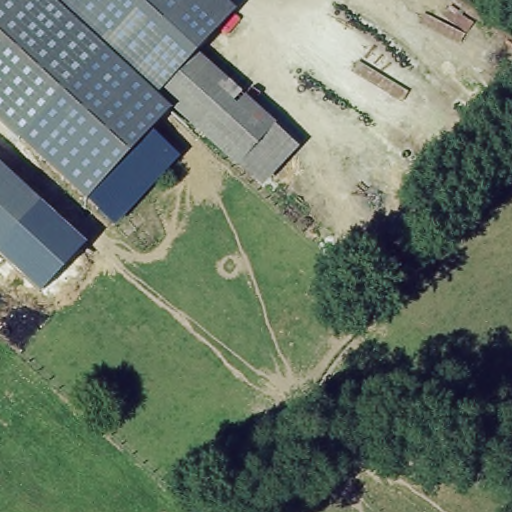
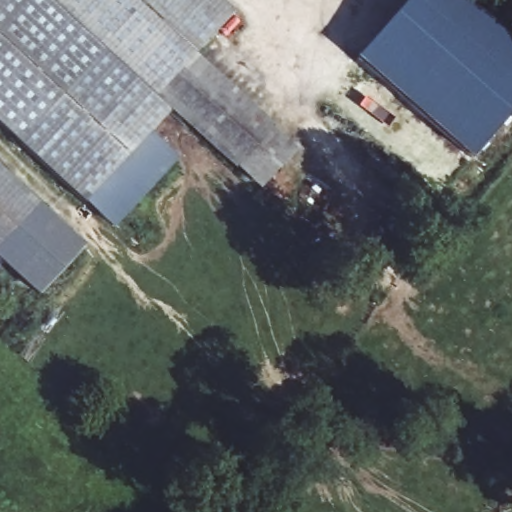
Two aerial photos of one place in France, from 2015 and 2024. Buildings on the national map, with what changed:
unchanged [(0,0),(50,0),(160,103),(188,129),(195,135),(175,156),(108,227),(0,125),(0,0)]
unchanged [(198,62),(197,61),(163,100),(160,103),(50,0),(186,0),(224,35),(198,62)]
unchanged [(224,35),(186,0),(209,0),(235,24),(224,35)]
new [(405,0),(467,0),(512,40),(512,113),(471,159),(356,55),(405,0)]
unchanged [(197,61),(198,62),(293,151),(258,189),(163,100),(197,61)]
unchanged [(0,166),(86,245),(39,295),(0,259),(0,166)]

